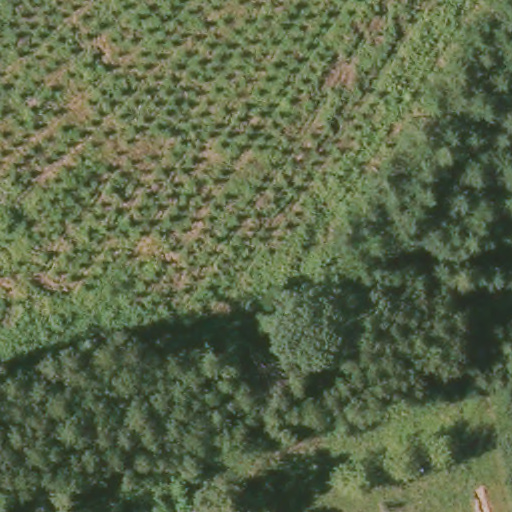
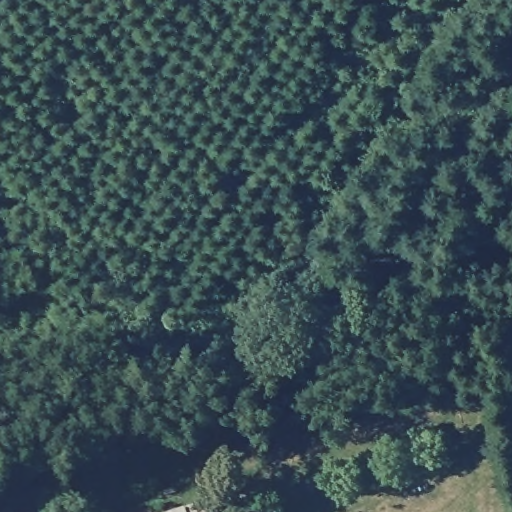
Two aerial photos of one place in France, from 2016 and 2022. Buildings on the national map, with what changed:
unchanged [(203,507),(204,512),(186,512),(203,507)]

